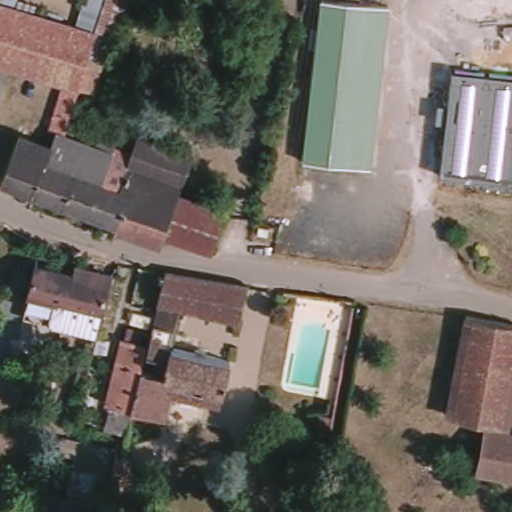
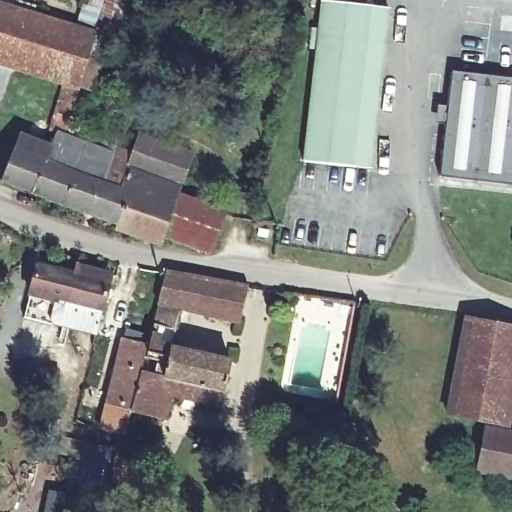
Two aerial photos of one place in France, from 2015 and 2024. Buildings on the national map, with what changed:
unchanged [(79,91),(70,118),(55,113),(64,88),(0,68),(0,3),(71,28),(79,5),(84,6),(87,0),(132,0),(119,41),(109,38),(101,64),(108,67),(98,98),(79,91)]
unchanged [(319,1),(373,6),(357,168),(304,163),(319,1)]
unchanged [(512,78),(512,184),(441,176),(451,71),(512,78)]
unchanged [(114,228),(4,189),(18,139),(48,150),(55,138),(64,139),(89,150),(95,134),(118,142),(103,189),(117,194),(138,140),(189,157),(178,194),(226,209),(212,251),(164,235),(161,250),(111,238),(114,228)]
unchanged [(40,260),(85,273),(88,264),(114,271),(98,332),(26,311),(40,260)]
unchanged [(238,323),(183,312),(176,342),(232,354),(222,396),(174,387),(161,384),(162,376),(140,371),(145,354),(165,281),(243,296),(238,323)]
unchanged [(508,425),(488,423),(444,416),(464,321),(512,327),(512,401),(508,425)]
unchanged [(105,405),(121,347),(145,354),(140,371),(138,377),(128,413),(105,405)]
unchanged [(138,377),(161,384),(174,387),(166,426),(128,413),(138,377)]
unchanged [(326,417),(309,414),(311,399),(328,402),(326,417)]
unchanged [(477,479),(484,440),(512,442),(512,483),(477,479)]
unchanged [(91,497),(89,512),(72,512),(75,493),(91,497)]

